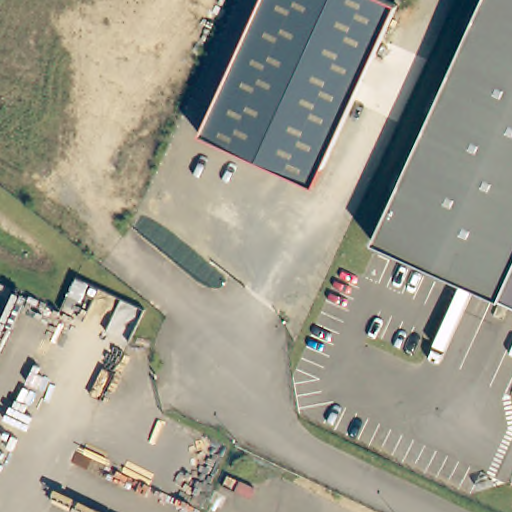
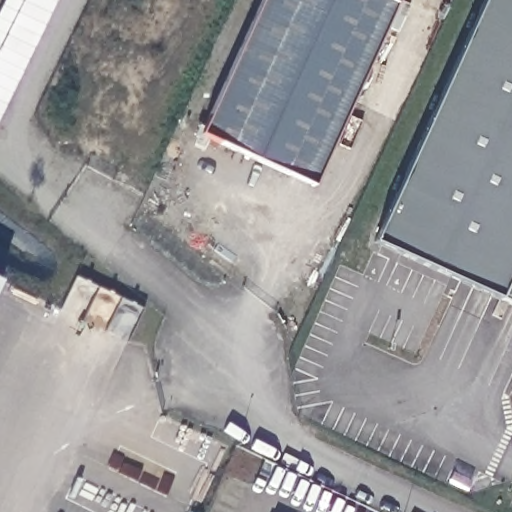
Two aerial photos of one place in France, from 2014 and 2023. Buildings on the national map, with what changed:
new [(5,0),(56,0),(0,119),(0,11),(5,0)]
unchanged [(316,193),(202,140),(263,0),(405,0),(401,8),(316,193)]
unchanged [(476,0),(512,0),(512,307),(365,239),(476,0)]

